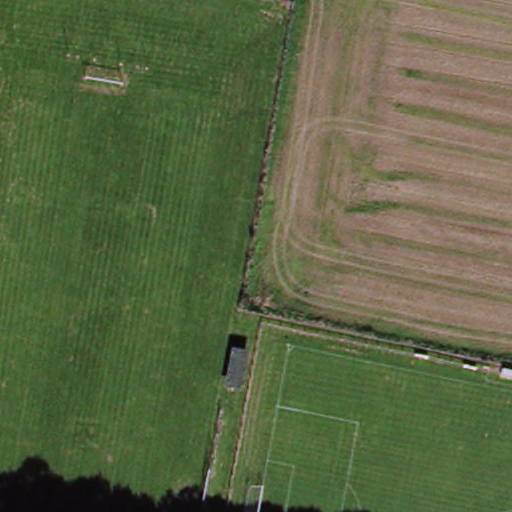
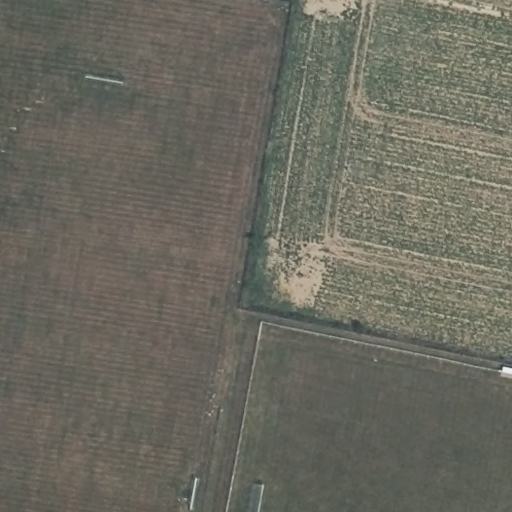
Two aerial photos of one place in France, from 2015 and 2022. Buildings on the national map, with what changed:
[]

